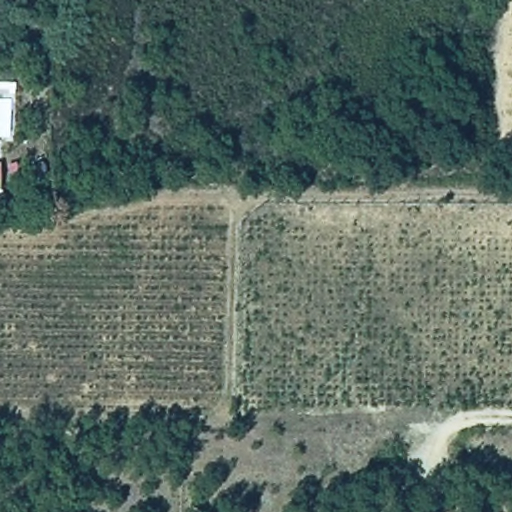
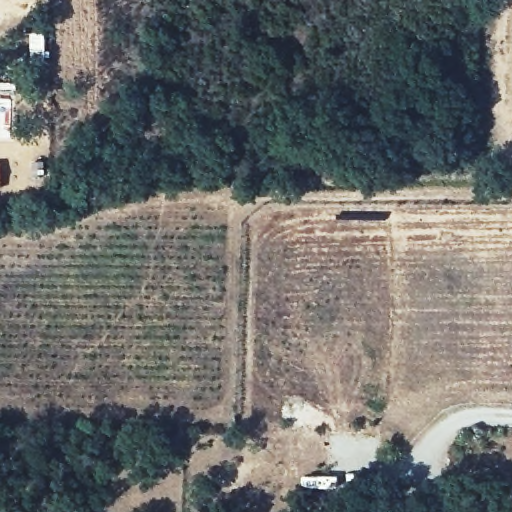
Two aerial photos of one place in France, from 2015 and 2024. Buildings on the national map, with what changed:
unchanged [(2,161),(2,187),(0,187),(0,161),(2,161)]

